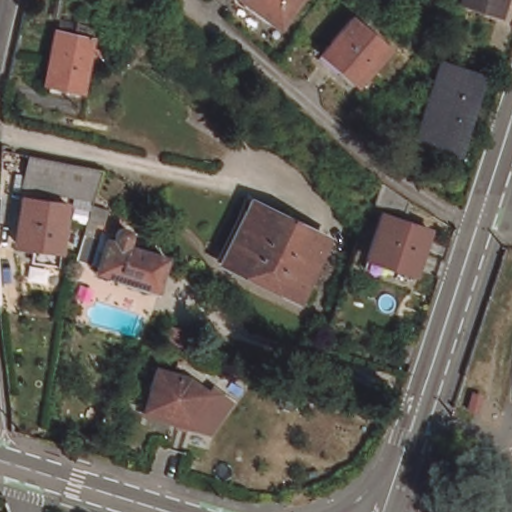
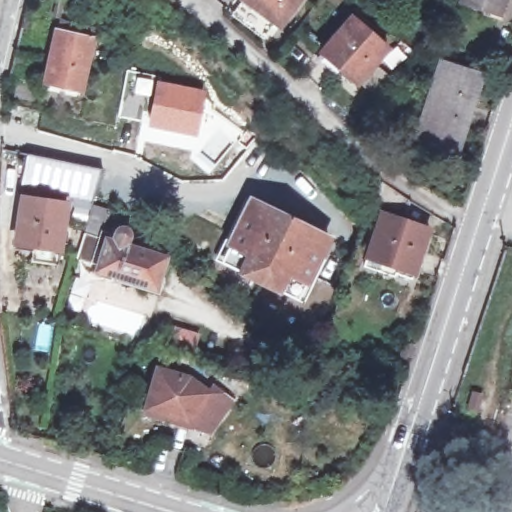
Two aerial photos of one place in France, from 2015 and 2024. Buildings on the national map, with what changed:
unchanged [(246,0),(296,0),(277,24),(246,0)]
unchanged [(461,1),(462,0),(506,0),(500,15),(461,1)]
unchanged [(356,83),(341,70),(336,75),(314,56),(347,18),(385,49),(356,83)]
unchanged [(77,95),(42,88),(53,36),(58,37),(60,28),(90,34),(77,95)]
unchanged [(448,148),(421,140),(444,66),(482,78),(466,125),(457,151),(448,148)]
new [(135,75),(205,89),(196,137),(146,128),(151,97),(132,94),(135,75)]
unchanged [(26,183),(30,156),(98,169),(96,178),(93,194),(92,197),(26,183)]
unchanged [(392,187),(410,199),(404,214),(374,204),(383,179),(392,187)]
unchanged [(35,257),(37,244),(17,240),(25,195),(68,202),(61,247),(58,261),(35,257)]
unchanged [(325,240),(297,294),(280,286),(276,295),(235,274),(239,265),(220,255),(231,230),(246,201),(325,240)]
unchanged [(78,258),(83,234),(90,204),(107,208),(102,230),(115,234),(117,232),(120,230),(125,231),(127,233),(128,235),(129,238),(126,249),(168,263),(161,283),(145,278),(141,287),(118,279),(97,272),(107,242),(101,240),(93,263),(78,258)]
unchanged [(427,235),(415,273),(367,257),(381,218),(427,235)]
unchanged [(147,410),(159,372),(188,381),(210,396),(214,390),(233,404),(208,434),(167,421),(145,414),(147,410)]

